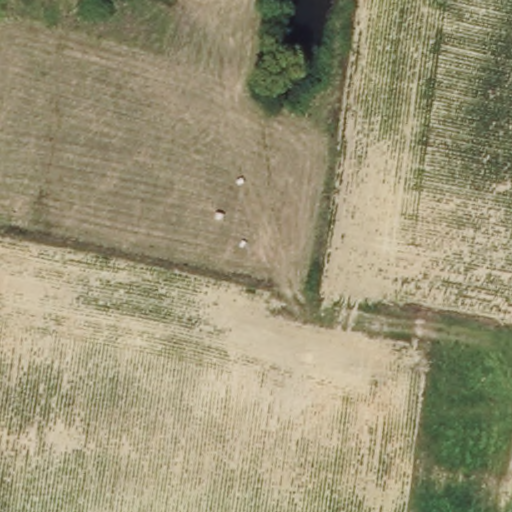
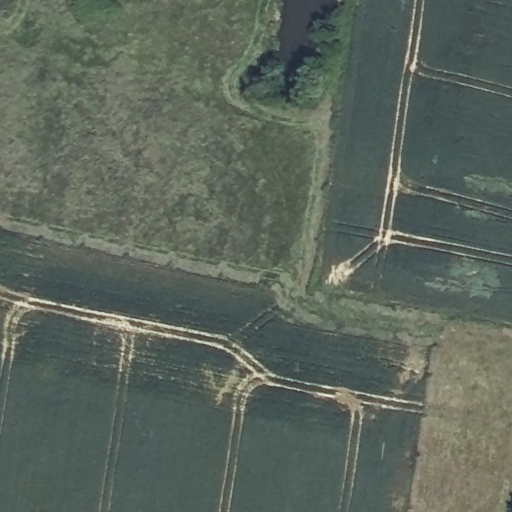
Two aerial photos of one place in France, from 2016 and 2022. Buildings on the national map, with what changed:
[]

